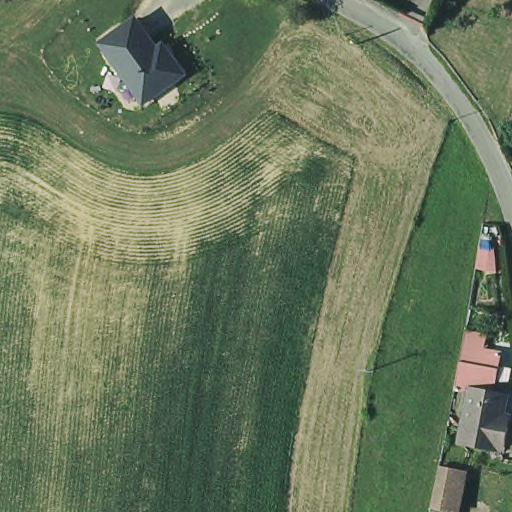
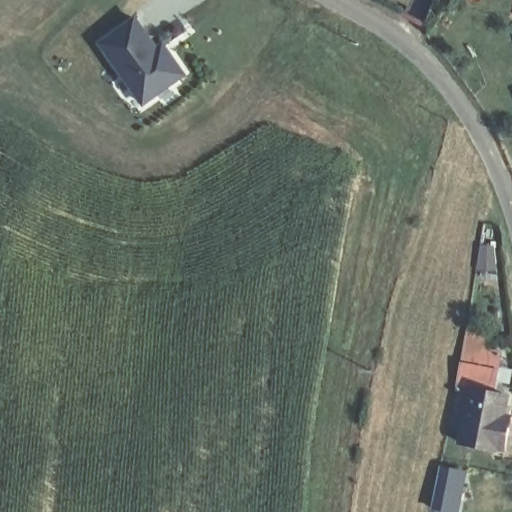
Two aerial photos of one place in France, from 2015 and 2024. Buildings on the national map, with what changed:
unchanged [(142,108),(95,45),(133,16),(157,46),(163,42),(188,76),(142,108)]
unchanged [(463,337),(463,336),(483,340),(481,354),(498,357),(492,395),(472,391),(455,388),(463,337)]
unchanged [(507,430),(505,448),(495,447),(495,450),(462,445),(472,391),(492,395),(505,397),(502,417),(510,419),(507,430)]
unchanged [(462,473),(453,512),(430,512),(431,510),(439,468),(462,473)]

